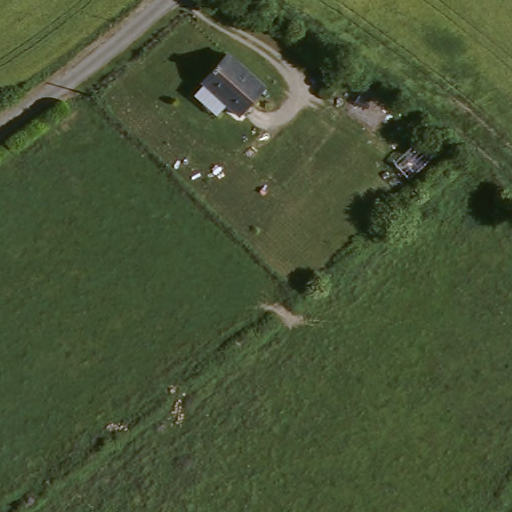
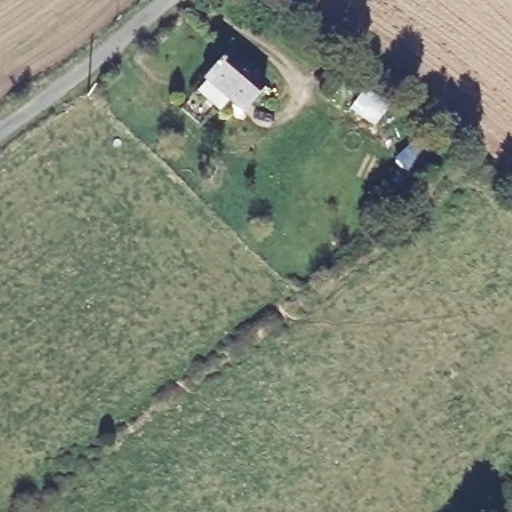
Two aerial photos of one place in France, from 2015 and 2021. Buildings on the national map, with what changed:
unchanged [(270,87),(243,115),(207,81),(233,54),(270,87)]
unchanged [(443,162),(419,181),(398,161),(423,142),(443,162)]

